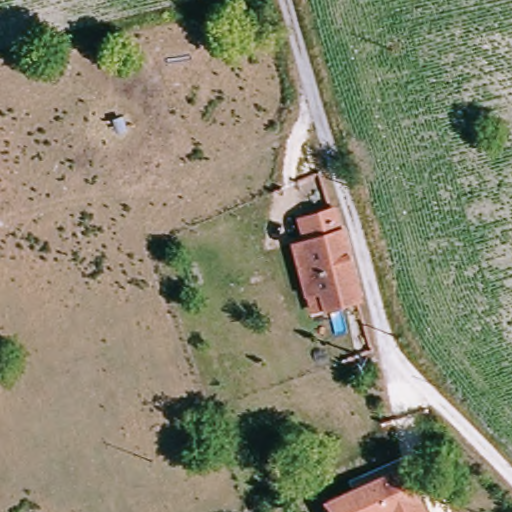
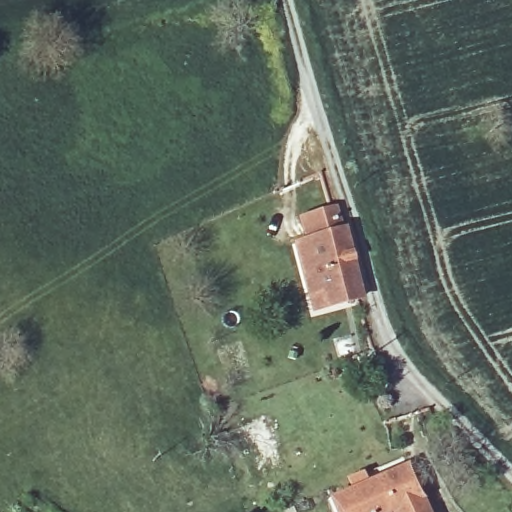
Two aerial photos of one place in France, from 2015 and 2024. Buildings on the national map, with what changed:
unchanged [(336,311),(331,296),(318,298),(304,250),(312,244),(308,224),(342,214),(348,234),(366,302),(336,311)]
unchanged [(405,466),(423,498),(393,512),(333,512),(326,497),(405,466)]
unchanged [(423,498),(429,512),(393,512),(423,498)]

